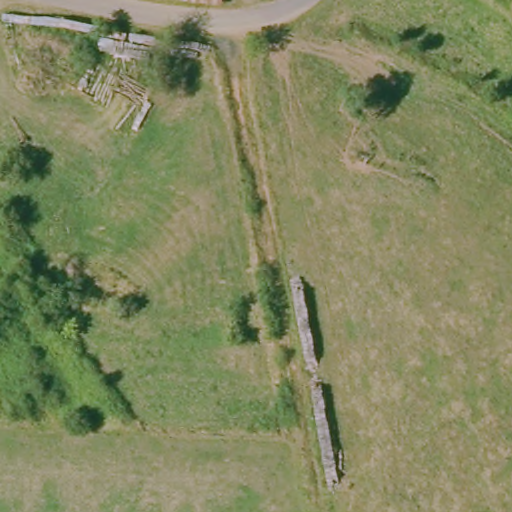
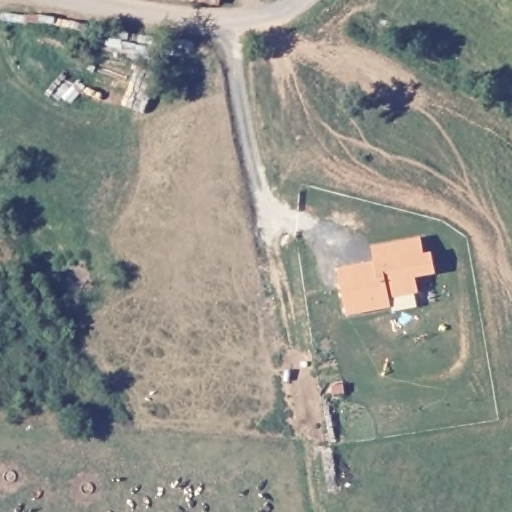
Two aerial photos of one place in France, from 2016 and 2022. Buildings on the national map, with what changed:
unchanged [(227,4),(189,0),(228,0),(227,4)]
new [(376,263),(373,247),(421,238),(424,255),(432,253),(436,273),(415,277),(419,295),(389,299),(390,308),(346,315),(339,269),(376,263)]

